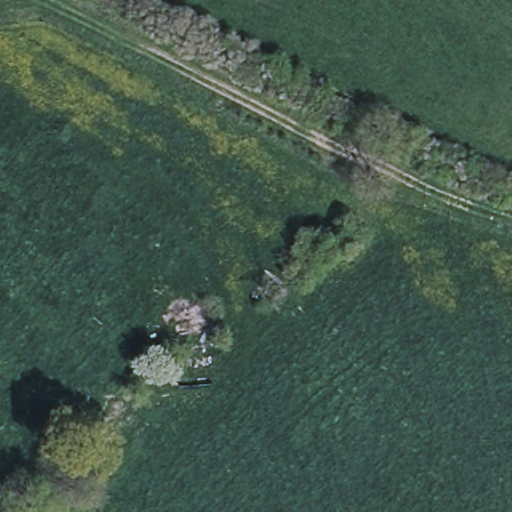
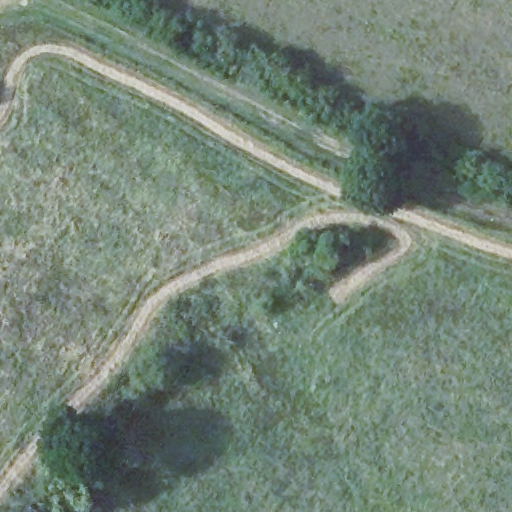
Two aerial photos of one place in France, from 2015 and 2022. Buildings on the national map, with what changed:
unchanged [(214,382),(180,387),(178,368),(211,361),(214,382)]

